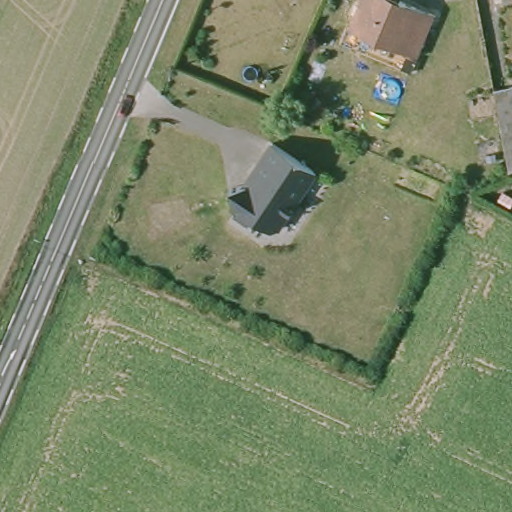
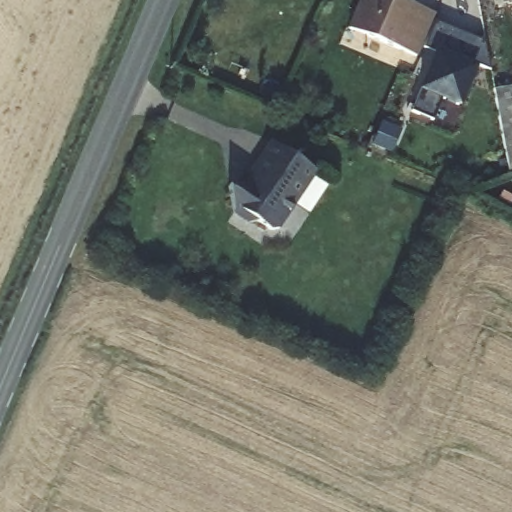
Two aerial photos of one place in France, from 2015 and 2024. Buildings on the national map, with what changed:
unchanged [(349,29),(361,0),(386,0),(397,5),(400,1),(431,15),(413,56),(349,29)]
new [(491,76),(476,70),(458,110),(442,103),(432,125),(411,116),(437,58),(423,51),(435,24),(486,46),(491,76)]
unchanged [(493,89),(498,88),(512,85),(512,170),(511,170),(506,172),(493,89)]
unchanged [(277,231),(269,231),(258,223),(248,224),(233,215),(230,189),(247,186),(255,173),(254,172),(272,145),(316,173),(277,231)]

